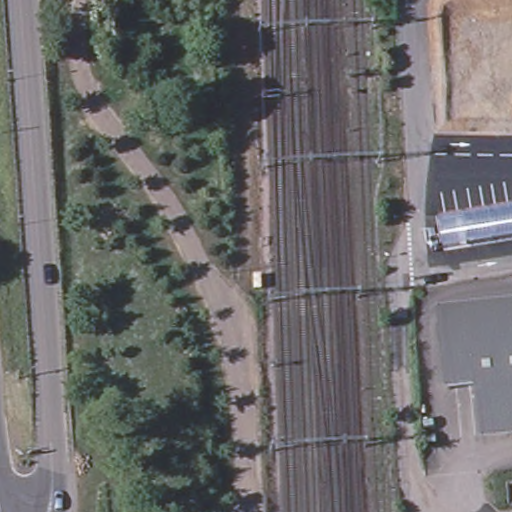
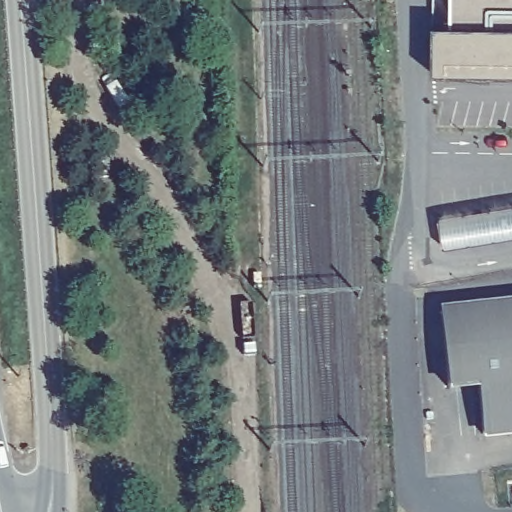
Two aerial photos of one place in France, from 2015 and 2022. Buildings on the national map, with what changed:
new [(436,26),(450,26),(450,0),(512,0),(512,72),(435,71),(436,26)]
new [(440,221),(512,209),(512,240),(445,251),(440,221)]
unchanged [(441,315),(512,307),(512,349),(446,363),(441,315)]
unchanged [(478,381),(449,385),(446,363),(512,349),(512,429),(484,432),(478,381)]

